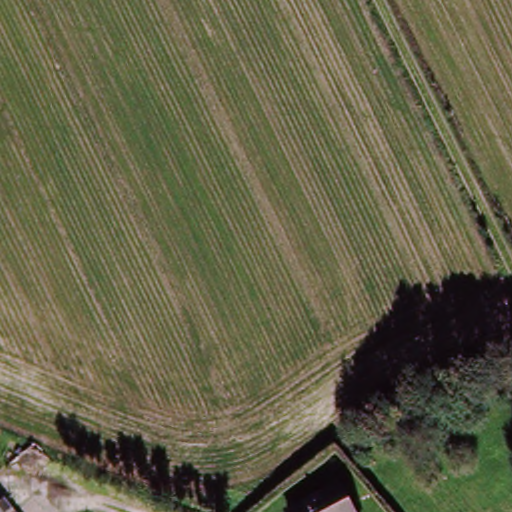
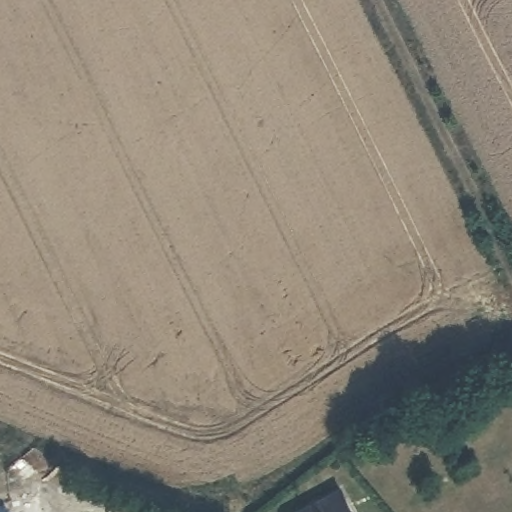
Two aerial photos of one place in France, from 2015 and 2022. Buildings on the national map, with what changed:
unchanged [(345,512),(287,512),(333,488),(345,512)]
unchanged [(0,512),(0,506),(5,512),(0,512)]

